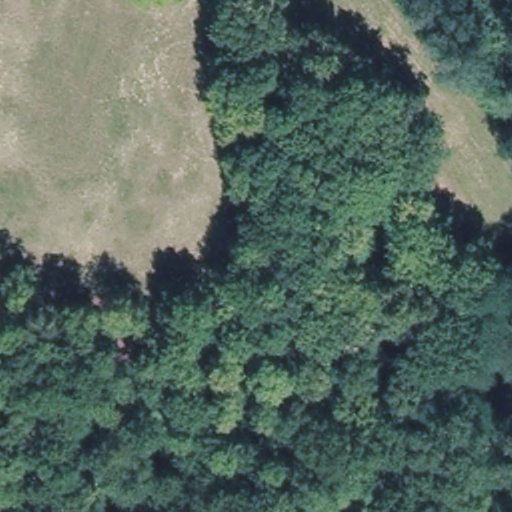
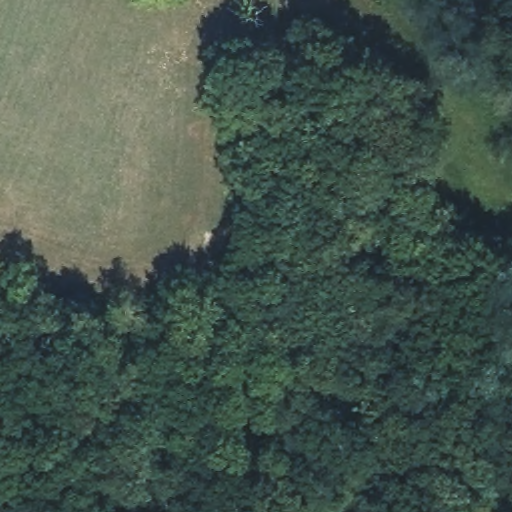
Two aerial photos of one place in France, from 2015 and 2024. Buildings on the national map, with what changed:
[]

